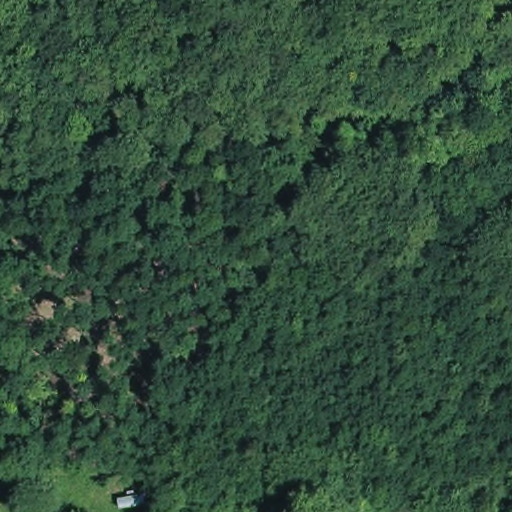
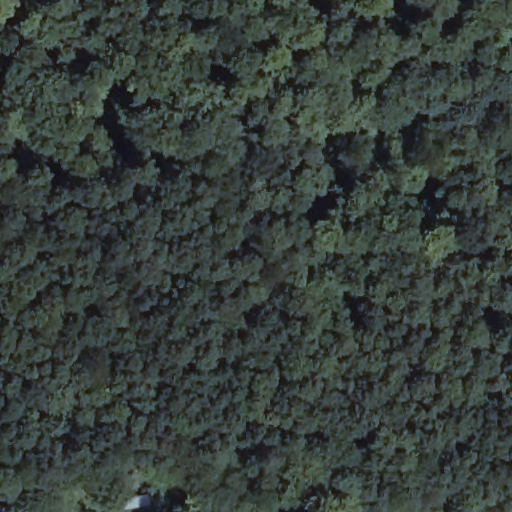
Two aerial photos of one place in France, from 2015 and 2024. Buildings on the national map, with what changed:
unchanged [(220,484),(276,482),(271,507),(232,512),(221,512),(220,484)]

